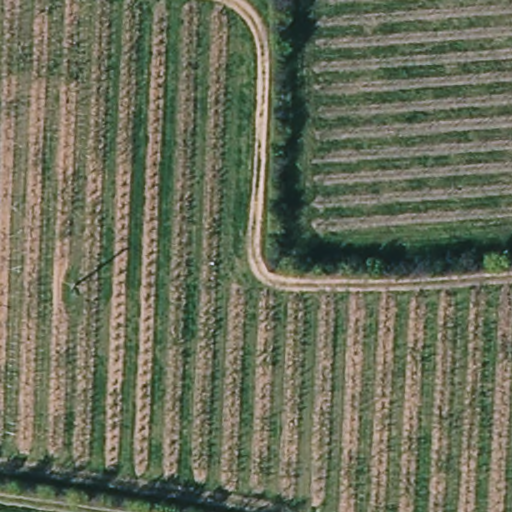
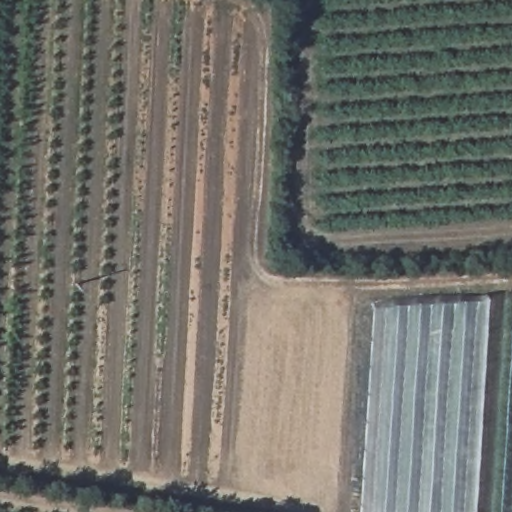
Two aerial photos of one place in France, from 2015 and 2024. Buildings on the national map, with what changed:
new [(358,512),(370,304),(485,296),(473,512),(358,512)]
new [(490,512),(503,296),(512,296),(512,512),(490,512)]

